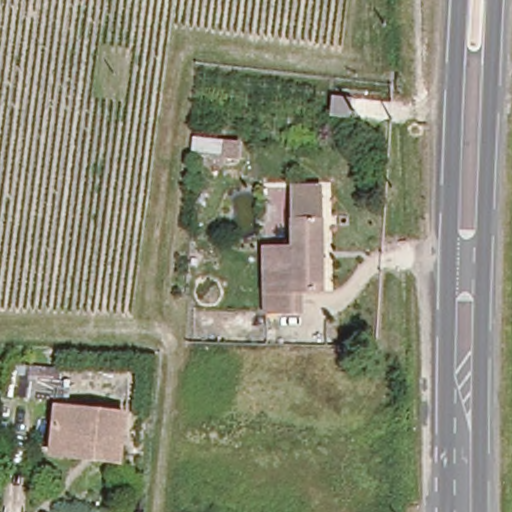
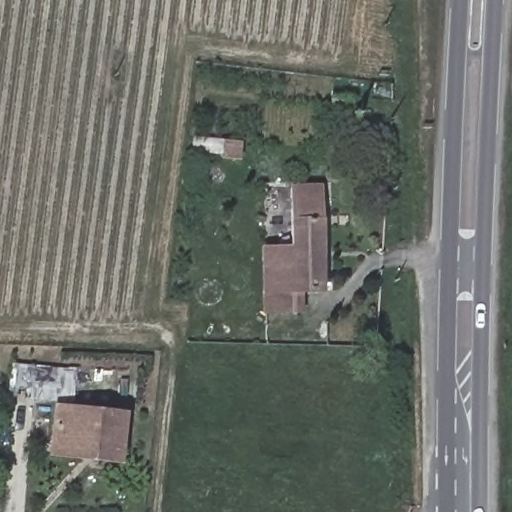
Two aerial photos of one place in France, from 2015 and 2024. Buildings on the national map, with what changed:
unchanged [(347,135),(323,134),(325,113),(348,115),(347,135)]
unchanged [(270,312),(269,249),(295,247),(295,187),(324,187),(325,288),(302,289),(303,311),(270,312)]
unchanged [(57,411),(126,418),(121,465),(101,464),(102,455),(52,450),(57,411)]

